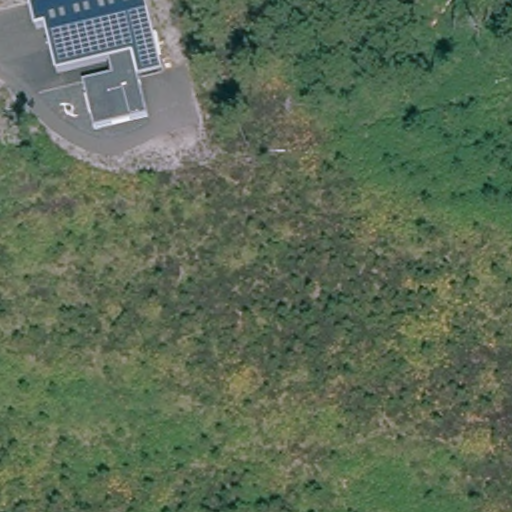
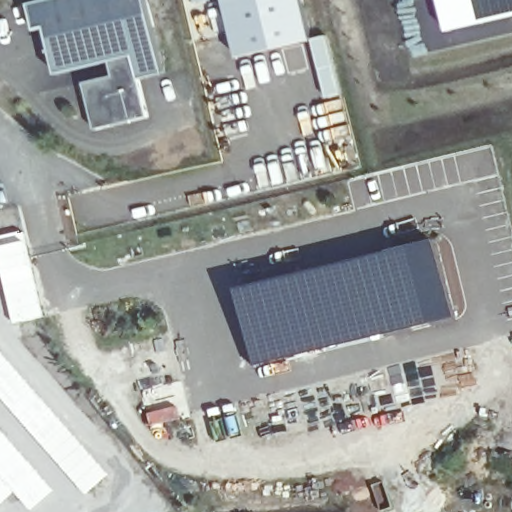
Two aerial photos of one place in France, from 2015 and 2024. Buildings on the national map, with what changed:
unchanged [(40,0),(146,0),(162,71),(141,77),(149,116),(95,129),(83,81),(113,75),(109,60),(59,71),(47,25),(37,27),(31,2),(40,0)]
new [(238,57),(225,0),(303,0),(312,40),(238,57)]
new [(447,33),(439,0),(512,0),(512,15),(447,33)]
new [(328,40),(341,94),(326,97),(313,44),(328,40)]
new [(43,317),(14,323),(0,263),(0,238),(23,233),(43,317)]
new [(437,257),(454,330),(256,375),(239,302),(437,257)]
new [(0,398),(0,353),(107,475),(84,494),(0,398)]
new [(29,510),(13,492),(0,503),(0,430),(52,490),(29,510)]

